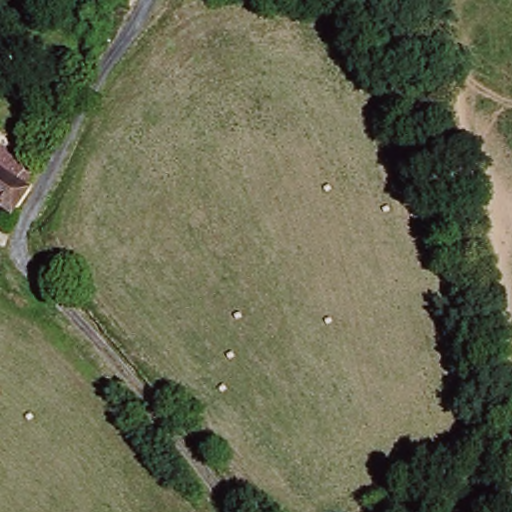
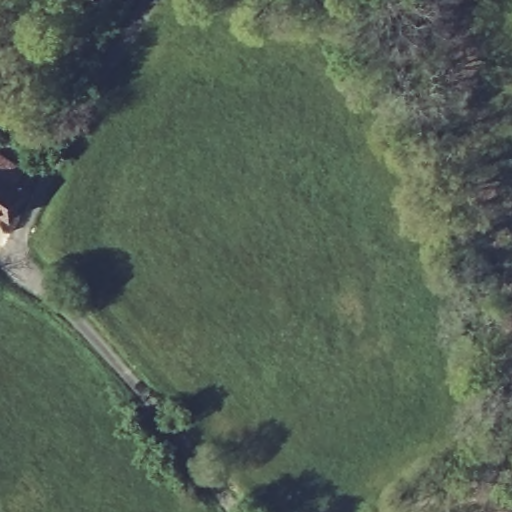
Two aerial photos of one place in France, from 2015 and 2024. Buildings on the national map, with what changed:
unchanged [(8,220),(0,215),(0,156),(35,176),(31,185),(8,220)]

